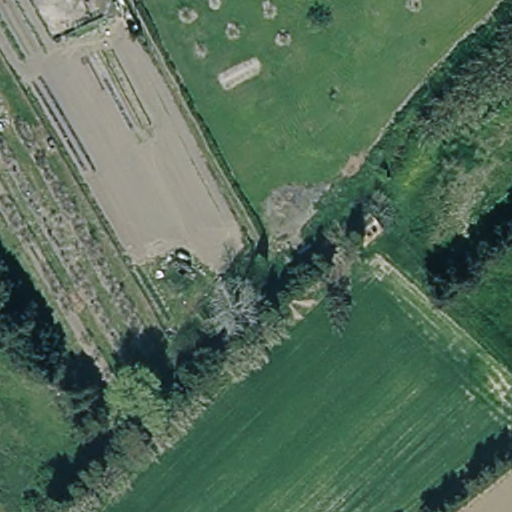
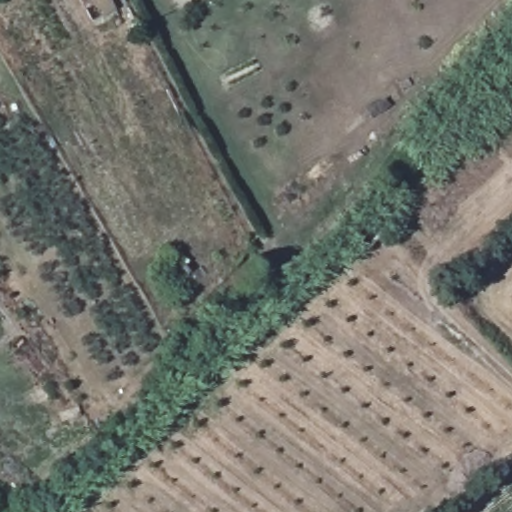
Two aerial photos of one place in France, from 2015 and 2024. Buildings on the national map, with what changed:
unchanged [(370,215),(384,232),(364,249),(350,233),(370,215)]

